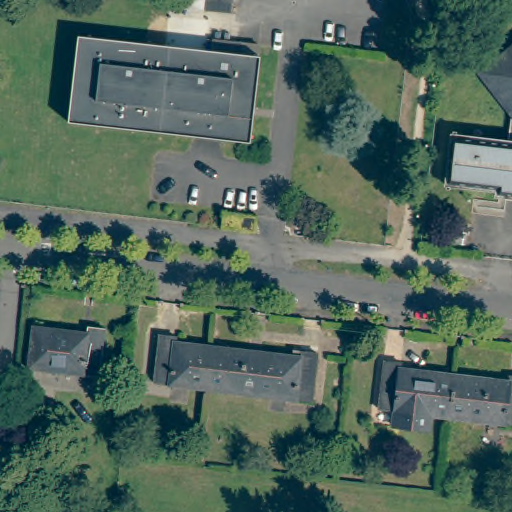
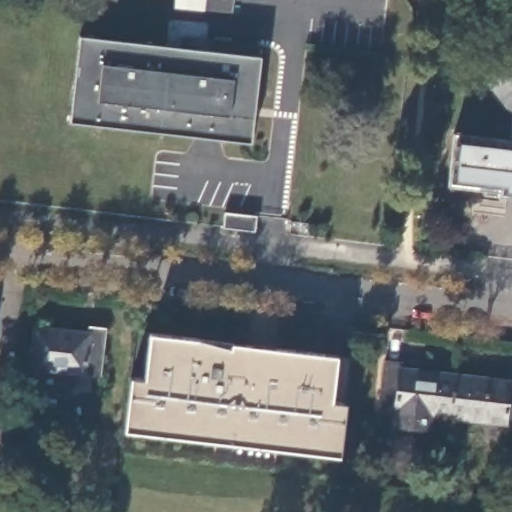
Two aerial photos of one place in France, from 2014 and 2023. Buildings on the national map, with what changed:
unchanged [(210,0),(235,0),(235,4),(209,1),(210,0)]
unchanged [(69,121),(79,35),(211,52),(212,41),(260,48),(248,144),(69,121)]
unchanged [(491,70),(489,67),(512,47),(512,101),(488,73),(491,70)]
unchanged [(499,192),(449,186),(456,133),(511,140),(512,132),(512,198),(498,197),(499,192)]
unchanged [(222,227),(223,213),(257,217),(255,231),(222,227)]
unchanged [(29,369),(33,327),(87,333),(87,327),(104,329),(99,376),(29,369)]
new [(229,347),(229,342),(337,355),(351,358),(346,402),(340,456),(123,430),(129,377),(144,378),(150,333),(197,339),(229,347)]
demolished [(247,372),(226,369),(224,390),(153,382),(159,334),(176,336),(175,341),(250,350),(247,372)]
demolished [(301,356),(301,350),(320,353),(313,400),(224,390),(226,369),(247,372),(250,350),(301,356)]
unchanged [(446,416),(425,414),(422,431),(392,427),(394,410),(375,407),(381,360),(398,362),(398,368),(451,374),(446,416)]
unchanged [(505,375),(512,376),(512,424),(446,416),(451,374),(504,381),(505,375)]

